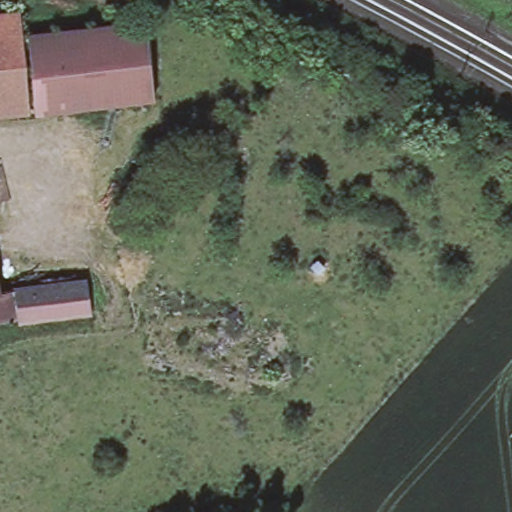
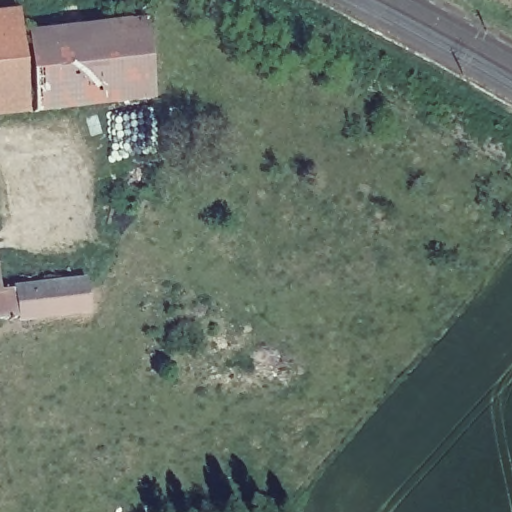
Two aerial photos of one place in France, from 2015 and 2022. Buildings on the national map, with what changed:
unchanged [(29,105),(0,109),(0,11),(20,8),(29,105)]
unchanged [(54,18),(55,26),(73,24),(72,16),(76,16),(77,24),(95,21),(94,14),(98,13),(99,21),(119,19),(118,11),(122,11),(123,18),(143,16),(146,17),(154,94),(35,108),(27,30),(50,27),(50,19),(54,18)]
unchanged [(130,199),(118,219),(106,212),(118,192),(130,199)]
unchanged [(218,248),(207,249),(206,238),(217,237),(218,248)]
unchanged [(88,277),(91,308),(33,315),(20,316),(20,314),(3,316),(0,317),(0,288),(16,286),(28,284),(88,277)]

